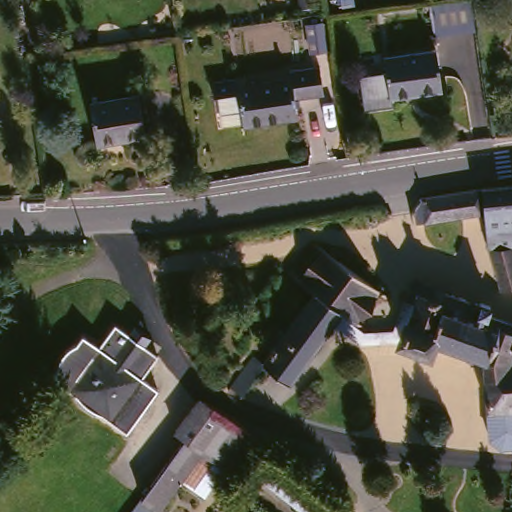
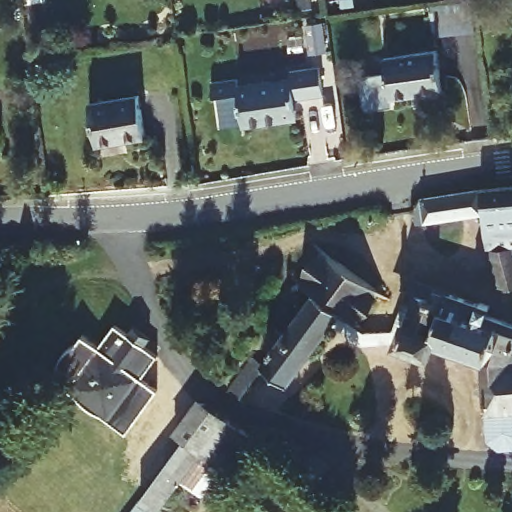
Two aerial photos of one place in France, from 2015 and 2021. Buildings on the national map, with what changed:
unchanged [(438,31),(434,1),(441,0),(476,0),(479,25),(438,31)]
unchanged [(326,53),(311,55),(306,25),(321,23),(326,53)]
unchanged [(446,46),(452,86),(399,94),(394,103),(373,106),(369,80),(376,71),(394,68),(393,54),(446,46)]
unchanged [(229,128),(224,97),(218,98),(216,82),(243,78),(244,86),(295,78),(294,72),(324,67),(327,94),(299,99),(301,118),(249,126),(248,125),(229,128)]
unchanged [(138,97),(144,137),(96,145),(89,105),(138,97)]
unchanged [(491,249),(488,249),(484,214),(482,190),(512,188),(512,287),(502,290),(491,249)]
unchanged [(423,215),(411,217),(409,211),(419,199),(482,190),(484,214),(424,224),(423,215)]
unchanged [(288,383),(264,365),(272,352),(264,345),(275,328),(284,335),(314,295),(299,283),(323,250),(379,293),(354,325),(339,314),(331,325),(288,383)]
unchanged [(488,439),(484,361),(431,341),(427,352),(401,342),(418,295),(431,299),(434,290),(479,306),(478,312),(512,325),(512,448),(501,449),(488,439)]
unchanged [(408,291),(418,295),(401,342),(359,345),(331,325),(339,314),(354,325),(365,333),(392,331),(408,291)]
unchanged [(162,351),(145,373),(162,385),(129,430),(104,412),(100,410),(94,407),(88,402),(82,396),(54,375),(61,366),(61,364),(62,357),(64,350),(69,344),(76,339),(80,337),(86,330),(103,343),(119,320),(162,351)]
unchanged [(239,397),(230,390),(243,372),(253,379),(239,397)]
unchanged [(224,467),(203,454),(161,512),(127,512),(137,499),(136,495),(178,437),(167,428),(194,394),(253,430),(224,467)]

